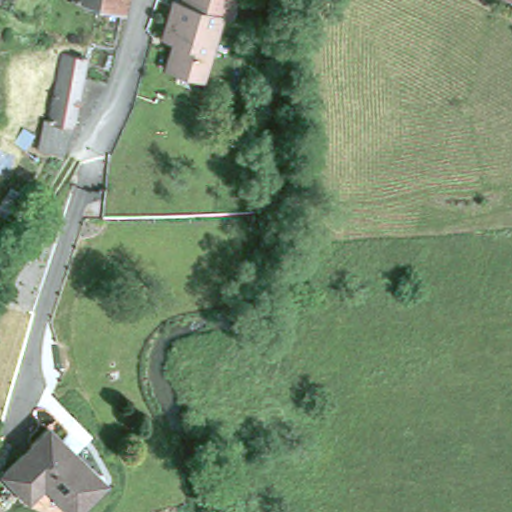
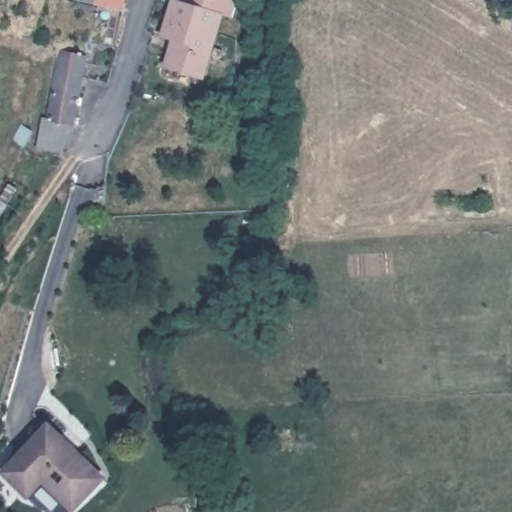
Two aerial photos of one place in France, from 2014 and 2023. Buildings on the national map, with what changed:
unchanged [(126,8),(91,0),(128,0),(126,8)]
unchanged [(157,34),(171,0),(174,0),(182,3),(184,0),(232,0),(226,18),(217,16),(196,79),(167,68),(160,66),(170,39),(157,34)]
unchanged [(511,0),(512,0),(512,1),(511,0)]
unchanged [(47,117),(54,117),(66,49),(90,54),(77,119),(74,128),(66,149),(42,144),(46,124),(47,117)]
unchanged [(109,482),(81,509),(50,483),(37,497),(11,472),(52,428),(109,482)]

